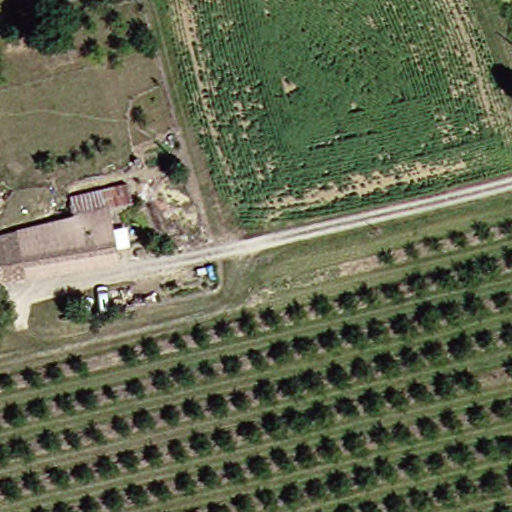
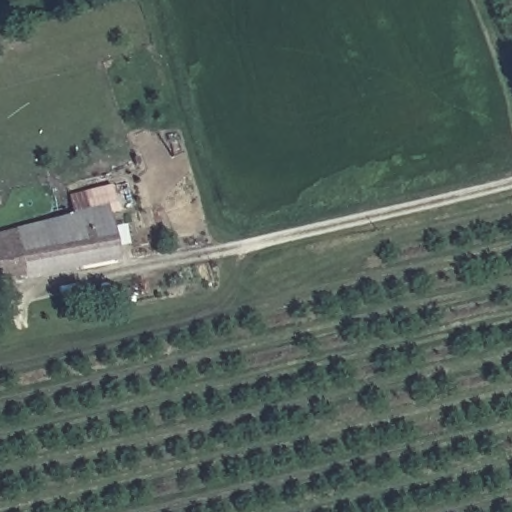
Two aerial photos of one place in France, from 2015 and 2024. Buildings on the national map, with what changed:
unchanged [(69,222),(65,197),(129,182),(134,209),(107,216),(69,222)]
unchanged [(107,216),(117,262),(1,282),(0,283),(0,237),(69,222),(107,216)]

